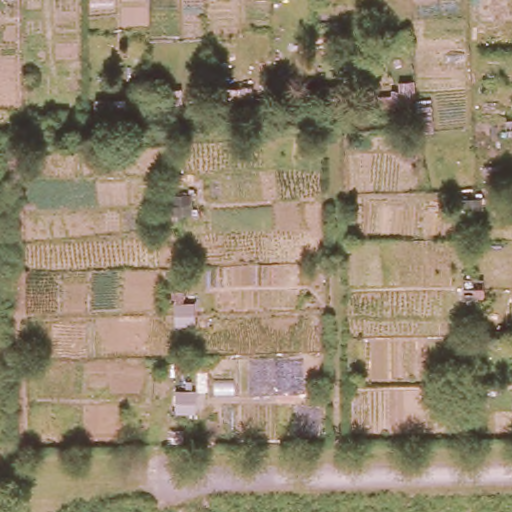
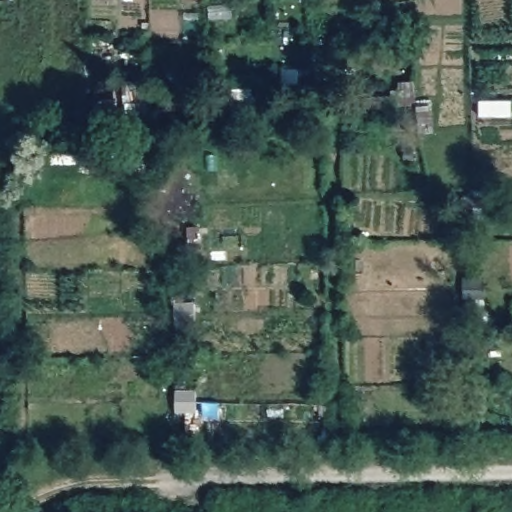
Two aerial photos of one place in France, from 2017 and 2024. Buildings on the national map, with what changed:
unchanged [(414,109),(429,108),(431,133),(416,134),(414,109)]

